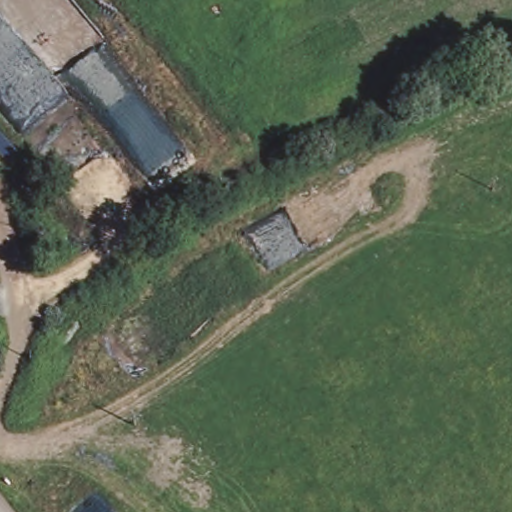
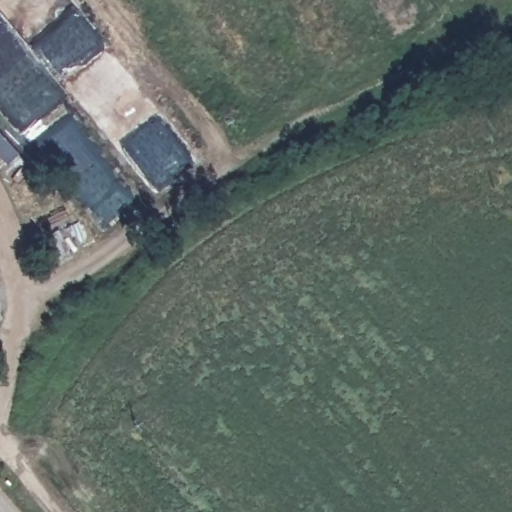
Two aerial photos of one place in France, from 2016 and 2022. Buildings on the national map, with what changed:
[]

